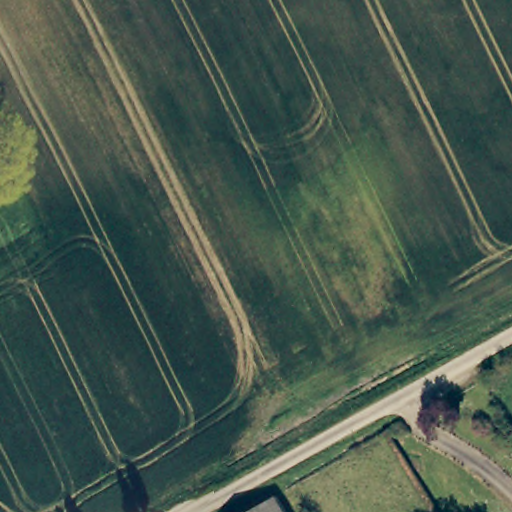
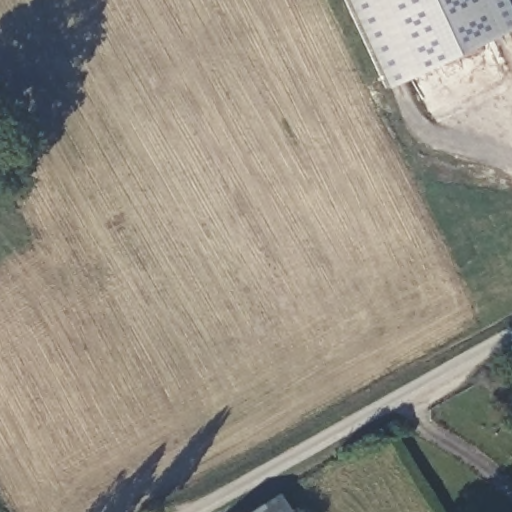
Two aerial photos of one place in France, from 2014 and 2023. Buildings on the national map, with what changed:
new [(385,91),(341,0),(501,0),(512,24),(512,30),(385,91)]
unchanged [(248,512),(272,498),(280,512),(248,512)]

